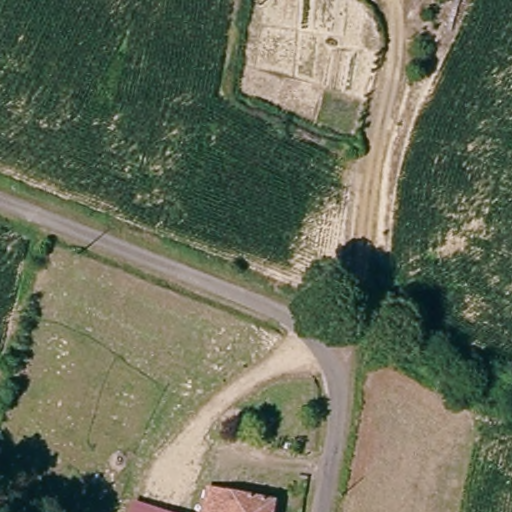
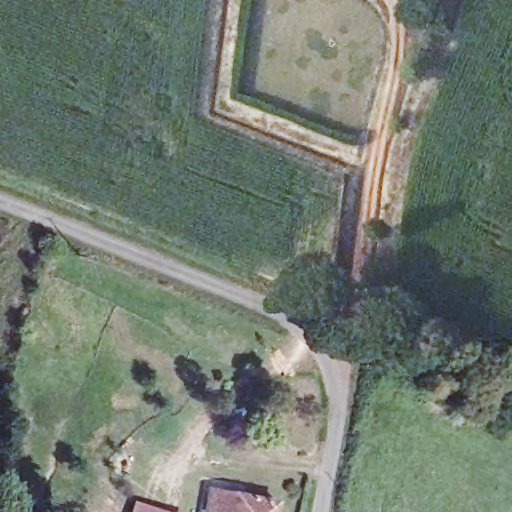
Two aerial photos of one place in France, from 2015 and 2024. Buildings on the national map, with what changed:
unchanged [(211,512),(215,492),(241,497),(238,512),(211,512)]
unchanged [(275,503),(280,504),(279,512),(238,512),(241,497),(275,503)]

